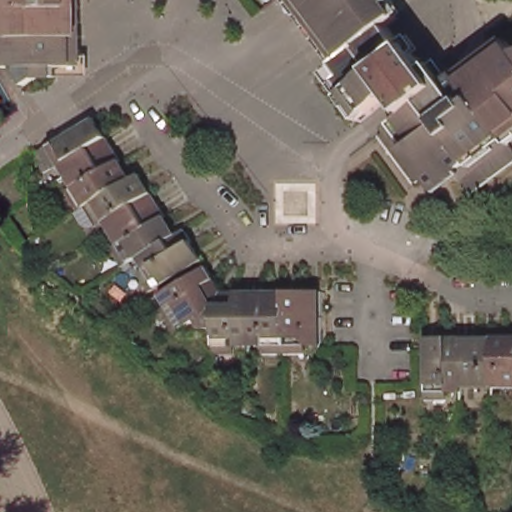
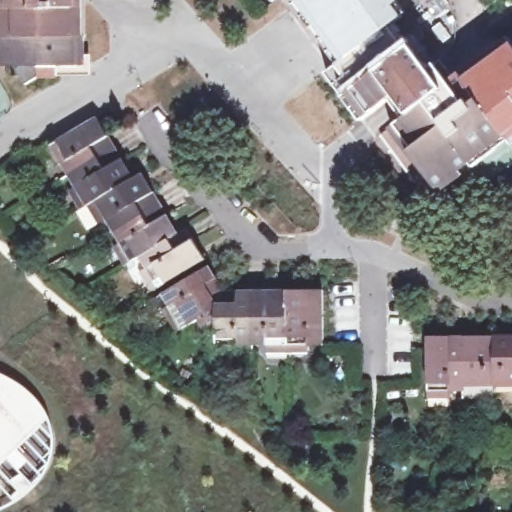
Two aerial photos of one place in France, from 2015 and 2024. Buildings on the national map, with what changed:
unchanged [(15,19),(15,7),(2,7),(0,7),(0,0),(87,0),(87,20),(15,19)]
unchanged [(279,0),(281,0),(280,1),(279,0)]
unchanged [(395,26),(385,34),(343,65),(294,0),(393,0),(407,18),(395,26)]
unchanged [(87,20),(87,65),(62,65),(62,74),(47,74),(32,84),(22,64),(10,64),(10,19),(15,19),(87,20)]
unchanged [(385,34),(395,26),(412,49),(417,44),(435,68),(442,63),(455,80),(487,56),(485,53),(501,41),(503,45),(512,38),(512,168),(478,192),(462,171),(441,187),(431,174),(422,180),(385,131),(416,109),(403,92),(370,116),(335,70),(343,65),(385,34)]
unchanged [(4,69),(0,71),(0,63),(3,67),(4,69)]
unchanged [(138,179),(147,174),(183,234),(192,230),(209,260),(162,287),(145,257),(137,261),(100,200),(92,205),(75,175),(67,180),(49,149),(56,145),(103,117),(138,179)]
unchanged [(162,298),(168,295),(214,267),(227,291),(328,290),(330,345),(222,344),(222,326),(209,325),(205,319),(190,328),(183,332),(162,298)]
unchanged [(465,386),(465,390),(428,390),(427,337),(478,336),(509,335),(512,335),(512,385),(465,386)]
new [(23,386),(36,398),(42,406),(47,417),(40,425),(52,438),(46,445),(52,450),(44,459),(48,464),(39,473),(42,476),(33,487),(25,495),(14,500),(0,485),(0,373),(11,378),(23,386)]

